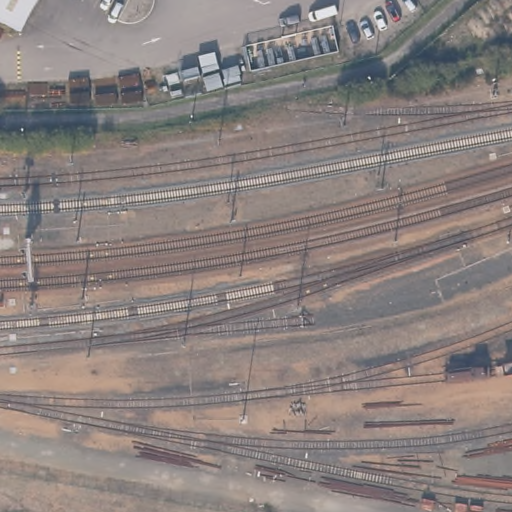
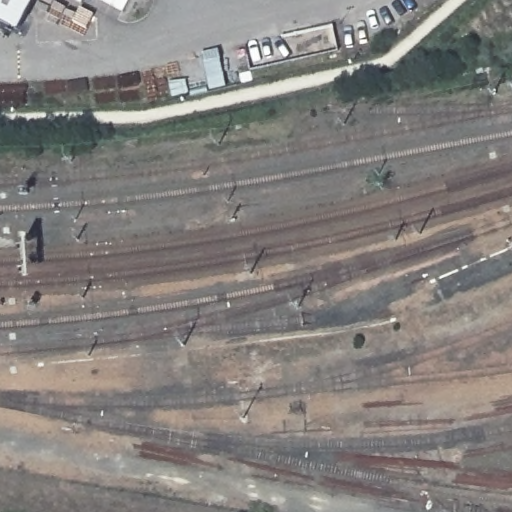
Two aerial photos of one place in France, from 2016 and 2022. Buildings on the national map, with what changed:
unchanged [(16,29),(0,20),(0,0),(32,0),(16,29)]

